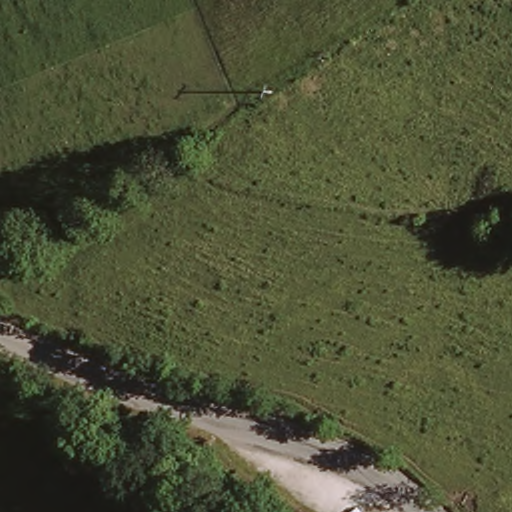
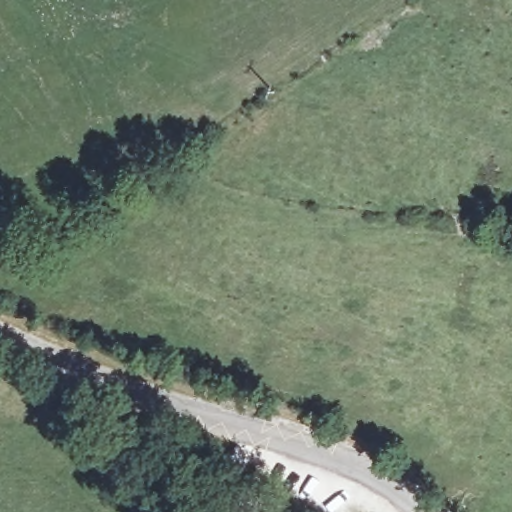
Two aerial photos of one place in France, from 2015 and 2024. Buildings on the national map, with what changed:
[]

